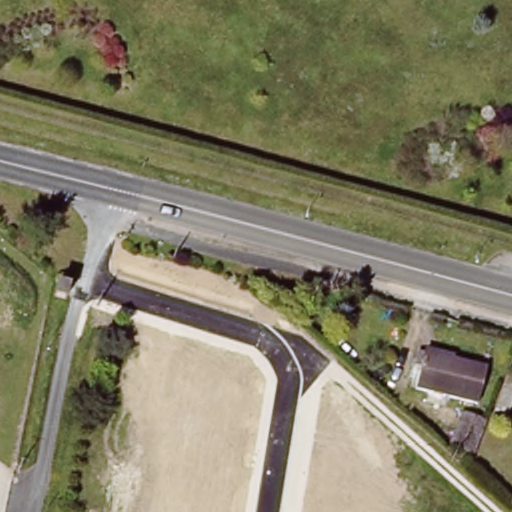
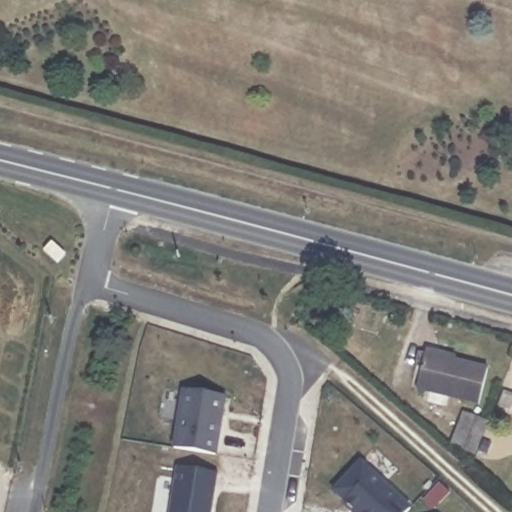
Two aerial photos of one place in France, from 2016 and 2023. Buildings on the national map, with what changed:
new [(50,241),(64,254),(56,263),(42,250),(50,241)]
unchanged [(423,345),(484,363),(475,395),(415,378),(423,345)]
new [(173,447),(182,390),(225,396),(217,454),(173,447)]
unchanged [(485,420),(474,452),(452,444),(465,412),(485,420)]
new [(352,512),(342,502),(343,500),(331,490),(358,460),(410,507),(406,512),(352,512)]
new [(170,512),(177,466),(217,473),(210,512),(170,512)]

